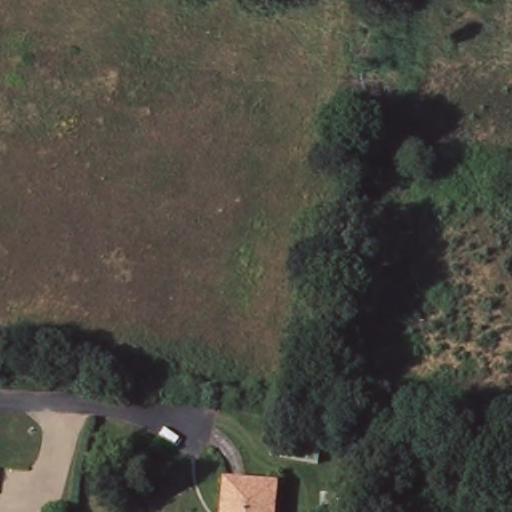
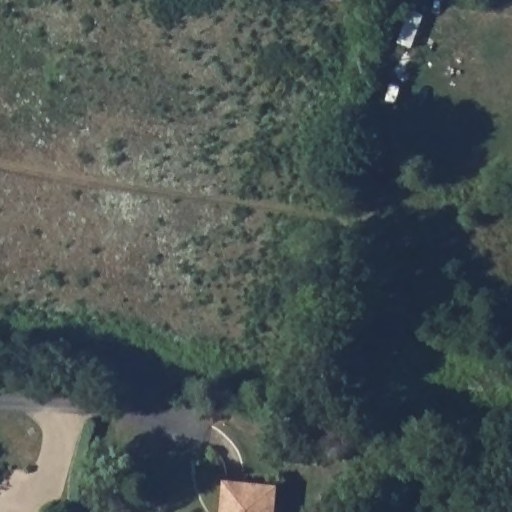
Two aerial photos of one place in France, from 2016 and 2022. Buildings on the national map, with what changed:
unchanged [(273,512),(221,512),(223,483),(275,488),(273,512)]

